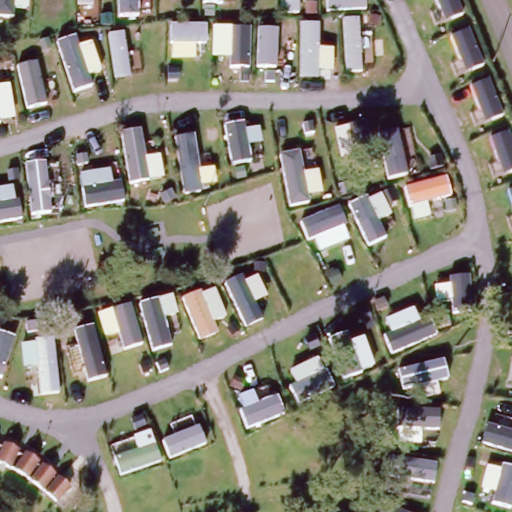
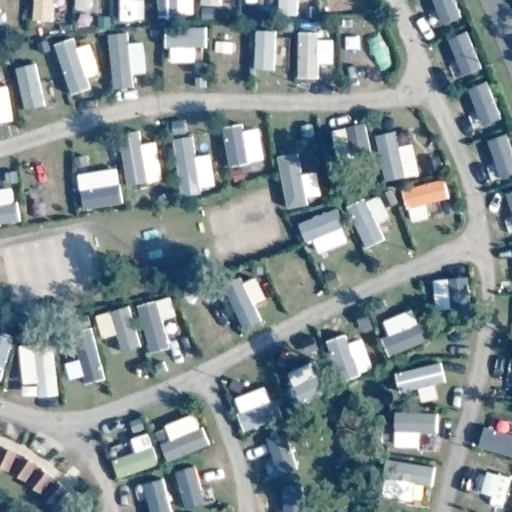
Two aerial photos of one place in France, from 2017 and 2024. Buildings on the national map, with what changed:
unchanged [(6,478),(0,475),(0,462),(3,455),(15,461),(6,478)]
unchanged [(35,470),(24,488),(13,482),(24,463),(35,470)]
unchanged [(51,483),(40,500),(30,492),(41,476),(51,483)]
unchanged [(67,497),(55,512),(45,503),(57,489),(67,497)]

